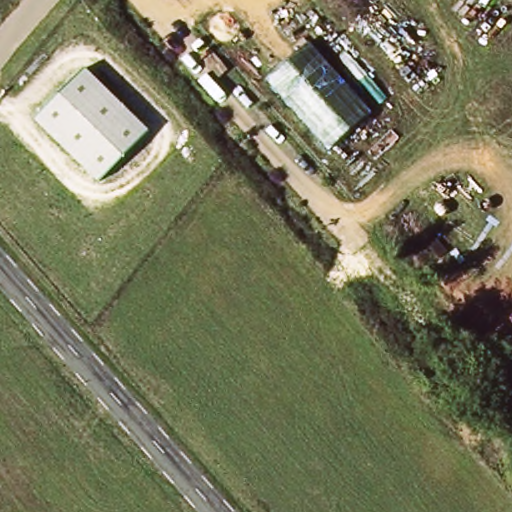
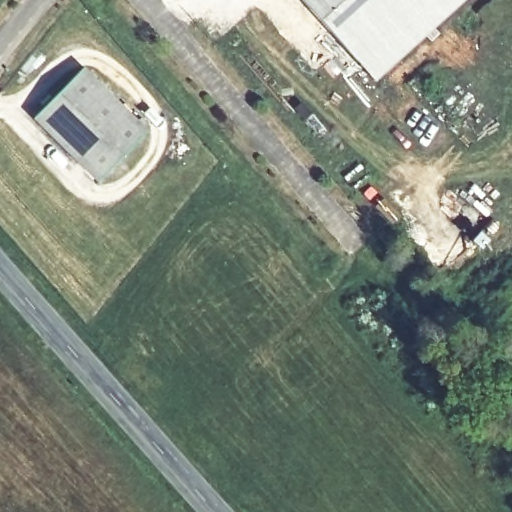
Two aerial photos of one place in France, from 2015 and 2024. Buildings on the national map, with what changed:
new [(299,0),(419,0),(352,59),(299,0)]
new [(460,0),(371,79),(352,59),(419,0),(460,0)]
unchanged [(86,68),(150,130),(96,184),(34,123),(86,68)]

